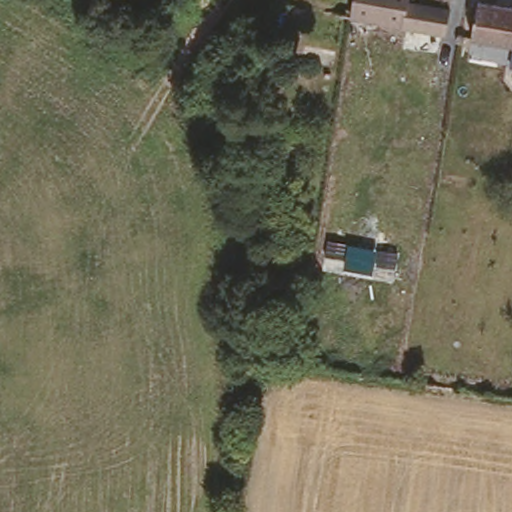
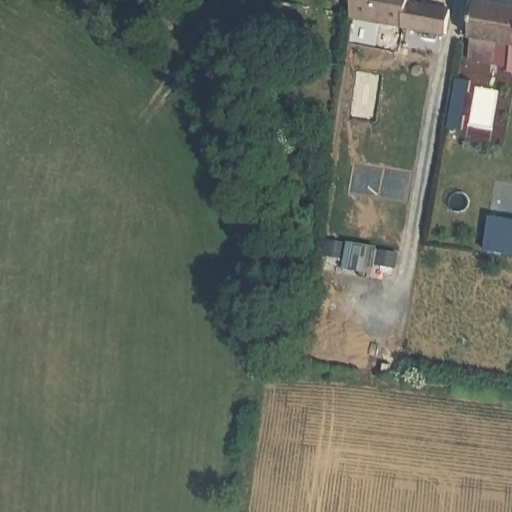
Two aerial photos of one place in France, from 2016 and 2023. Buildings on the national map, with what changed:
unchanged [(355,24),(359,0),(416,0),(415,9),(455,18),(450,40),(355,24)]
unchanged [(512,44),(502,43),(497,65),(470,60),(475,39),(480,0),(512,5),(512,44)]
unchanged [(308,11),(306,25),(286,20),(284,29),(270,25),(274,5),(308,11)]
unchanged [(336,51),(332,67),(300,59),(303,46),(336,51)]
new [(512,258),(483,253),(489,214),(512,218),(512,258)]

